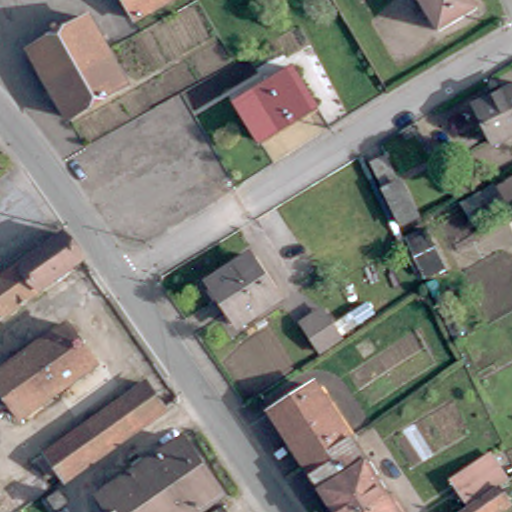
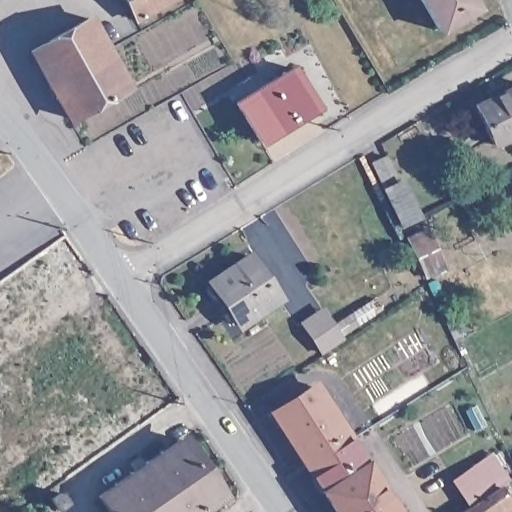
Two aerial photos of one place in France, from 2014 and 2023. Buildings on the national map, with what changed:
unchanged [(123,0),(164,0),(133,18),(123,0)]
unchanged [(482,21),(447,42),(423,0),(470,0),(482,21)]
unchanged [(88,20),(129,85),(70,120),(30,54),(88,20)]
unchanged [(315,106),(258,142),(233,106),(290,68),(315,106)]
unchanged [(487,99),(484,93),(500,86),(502,92),(512,87),(512,138),(491,148),(472,107),(487,99)]
unchanged [(387,153),(414,217),(398,224),(370,160),(387,153)]
unchanged [(507,203),(473,220),(465,201),(497,185),(507,203)]
unchanged [(0,319),(0,280),(63,235),(81,261),(0,319)]
unchanged [(433,238),(442,257),(423,266),(415,247),(433,238)]
unchanged [(245,257),(275,302),(239,326),(209,280),(245,257)]
demolished [(18,418),(0,392),(0,374),(67,327),(93,366),(18,418)]
demolished [(162,407),(64,477),(45,452),(145,383),(162,407)]
unchanged [(307,467),(271,413),(315,387),(350,440),(307,467)]
unchanged [(198,512),(112,512),(98,493),(182,435),(223,494),(198,512)]
unchanged [(350,440),(396,512),(335,512),(307,467),(350,440)]
unchanged [(477,464),(495,490),(505,505),(495,512),(465,512),(469,509),(451,482),(477,464)]
demolished [(51,512),(42,499),(66,482),(77,499),(59,512),(51,512)]

